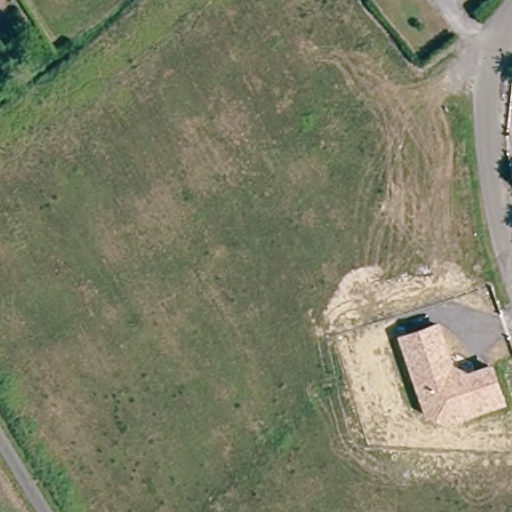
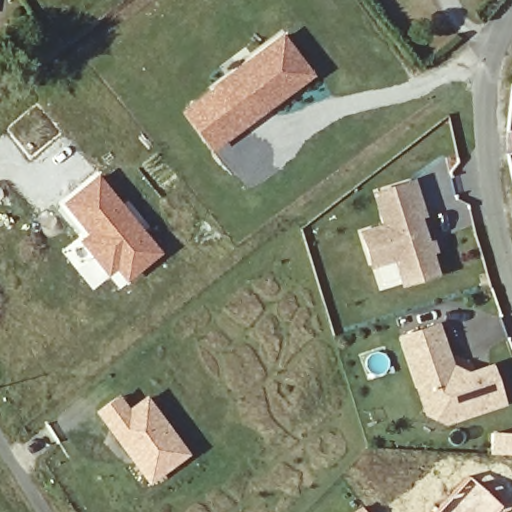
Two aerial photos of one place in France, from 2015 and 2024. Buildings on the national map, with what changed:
new [(245,58),(284,30),(315,74),(211,153),(179,110),(245,58)]
new [(99,172),(162,252),(119,290),(76,240),(84,234),(59,203),(99,172)]
new [(428,218),(423,220),(430,240),(435,239),(439,252),(434,255),(441,277),(402,288),(395,263),(371,270),(360,232),(382,226),(372,193),(416,180),(428,218)]
unchanged [(397,334),(439,321),(453,362),(467,370),(492,362),(505,404),(444,423),(424,416),(397,334)]
new [(117,392),(128,406),(146,393),(190,453),(149,483),(94,411),(117,392)]
new [(432,512),(466,474),(500,506),(494,512),(432,512)]

